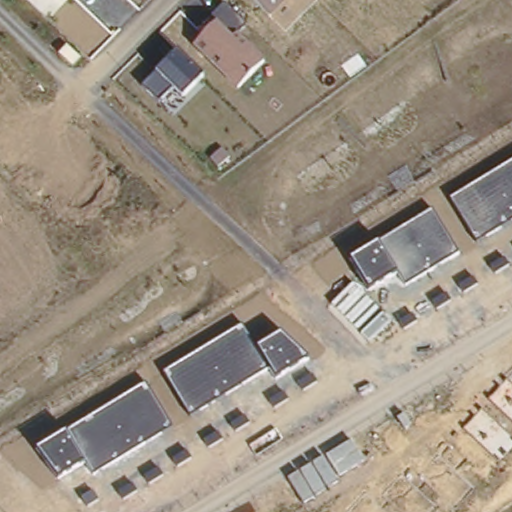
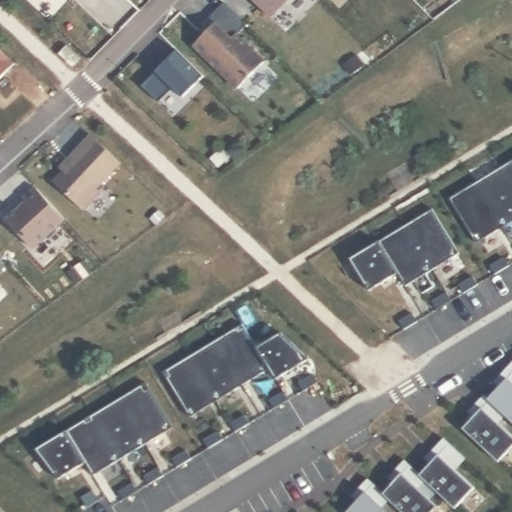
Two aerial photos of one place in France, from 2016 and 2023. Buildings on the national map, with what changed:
unchanged [(39,0),(44,0),(42,2),(39,0)]
unchanged [(247,24),(237,33),(264,61),(237,94),(191,46),(215,22),(209,16),(223,0),(247,24)]
unchanged [(248,0),(288,0),(268,21),(248,0)]
unchanged [(204,75),(184,96),(173,88),(159,101),(141,84),(176,48),(204,75)]
new [(13,65),(0,79),(0,52),(13,65)]
new [(94,186),(98,190),(81,208),(52,180),(74,156),(61,170),(58,166),(70,153),(89,133),(118,160),(94,186)]
unchanged [(512,222),(476,244),(448,198),(512,161),(512,222)]
new [(4,221),(25,203),(23,199),(36,188),(68,221),(34,253),(4,221)]
unchanged [(457,253),(405,286),(397,274),(369,291),(348,258),(432,209),(457,253)]
new [(3,263),(0,267),(0,260),(3,263)]
unchanged [(243,324),(257,347),(281,333),(310,359),(277,379),(270,367),(190,416),(163,371),(243,324)]
unchanged [(512,423),(487,401),(507,378),(512,383),(512,423)]
unchanged [(174,426),(94,476),(85,462),(58,478),(36,448),(146,381),(174,426)]
unchanged [(512,452),(499,466),(462,430),(484,408),(512,437),(512,452)]
new [(425,457),(444,437),(449,442),(430,462),(425,457)]
new [(466,457),(455,468),(474,486),(455,507),(420,473),(449,442),(466,457)]
new [(404,458),(410,464),(393,481),(388,476),(404,458)]
new [(426,479),(419,486),(438,504),(432,512),(405,512),(384,492),(410,464),(426,479)]
new [(373,482),(357,500),(351,495),(368,477),(373,482)]
new [(347,511),(373,482),(390,498),(383,505),(390,512),(348,512),(347,511)]

